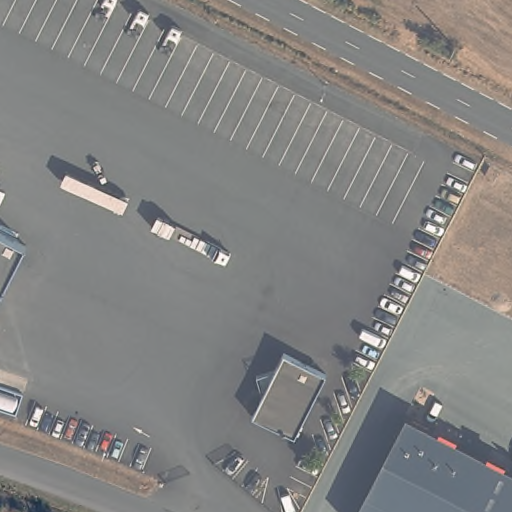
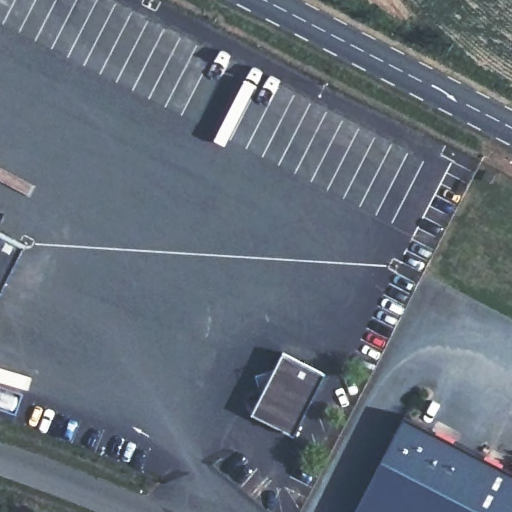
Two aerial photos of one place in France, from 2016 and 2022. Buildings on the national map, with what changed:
unchanged [(0,301),(0,241),(25,254),(0,301)]
unchanged [(327,370),(297,431),(256,411),(286,347),(327,370)]
unchanged [(376,512),(359,503),(403,414),(512,469),(512,512),(376,512)]

